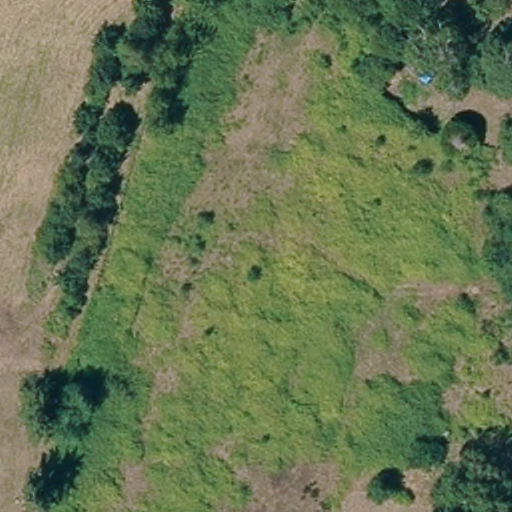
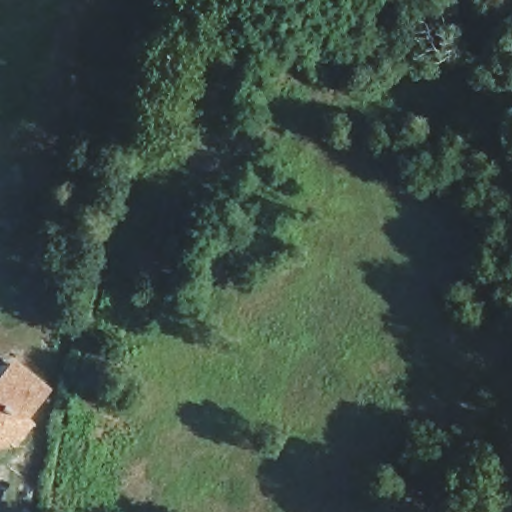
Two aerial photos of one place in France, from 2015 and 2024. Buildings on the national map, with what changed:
new [(20,361),(51,386),(28,415),(33,419),(19,437),(14,432),(8,440),(2,435),(0,436),(0,385),(20,361)]

